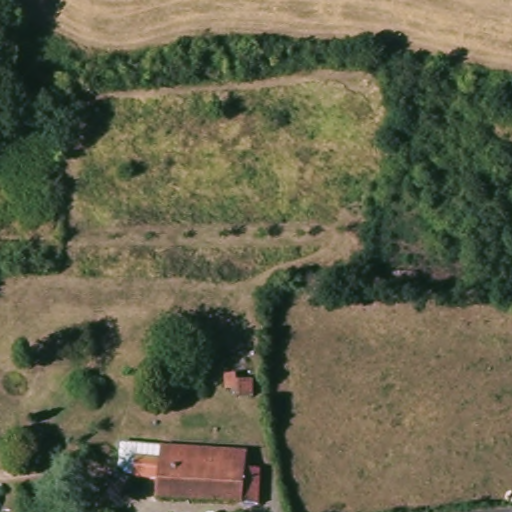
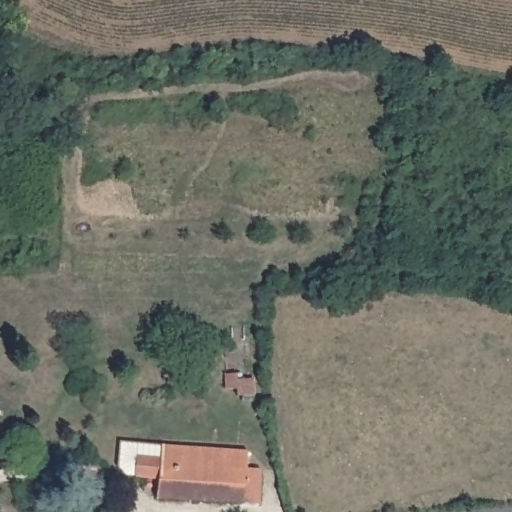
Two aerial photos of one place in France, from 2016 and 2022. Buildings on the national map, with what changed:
unchanged [(250,363),(248,380),(232,378),(232,371),(220,370),(222,352),(235,354),(234,361),(250,363)]
unchanged [(268,485),(265,512),(188,512),(160,508),(162,489),(139,486),(141,465),(165,468),(166,454),(205,459),(256,464),(255,484),(268,485)]

